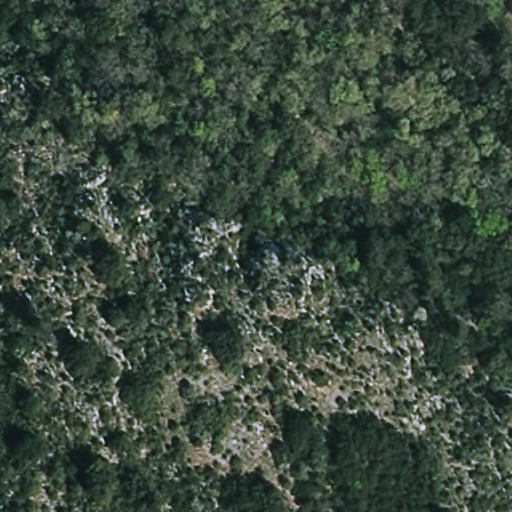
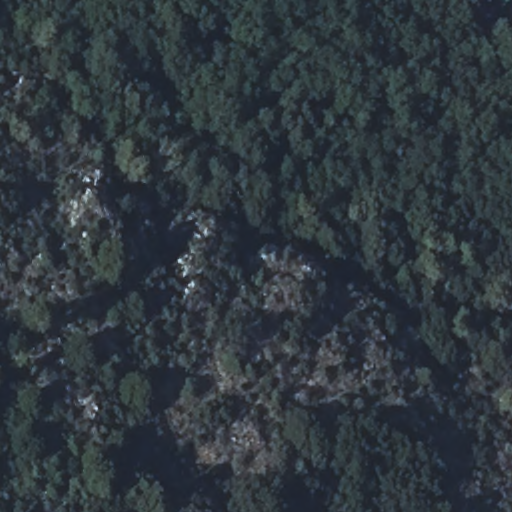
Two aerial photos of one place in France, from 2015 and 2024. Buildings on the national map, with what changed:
[]

